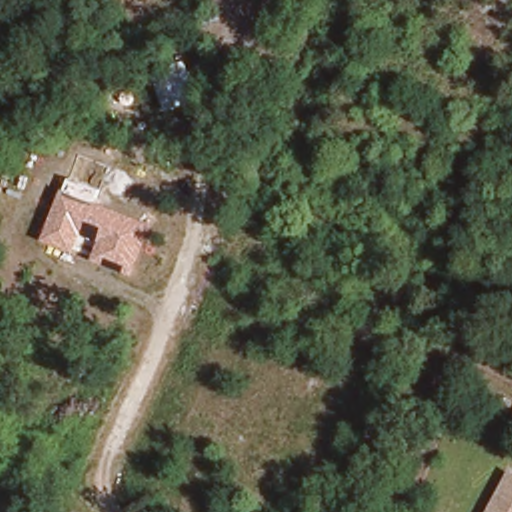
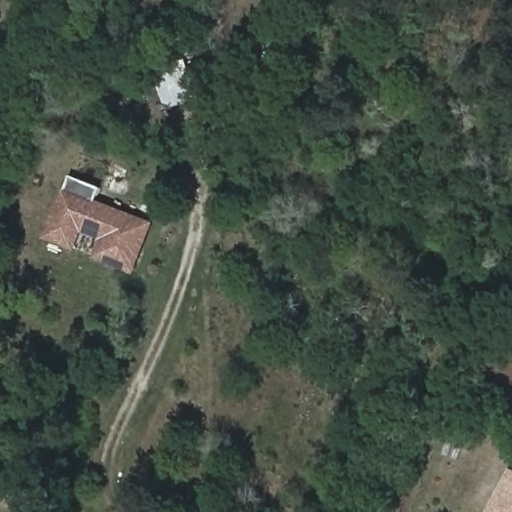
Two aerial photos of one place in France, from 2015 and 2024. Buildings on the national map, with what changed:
unchanged [(135,275),(92,261),(105,227),(88,222),(76,251),(43,240),(61,191),(153,223),(135,275)]
unchanged [(512,512),(487,512),(509,470),(512,471),(512,512)]

